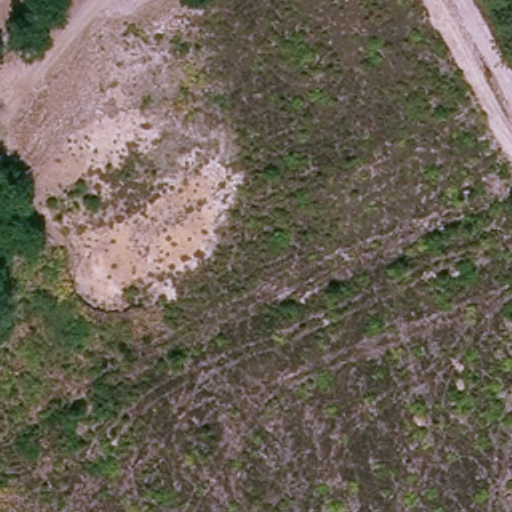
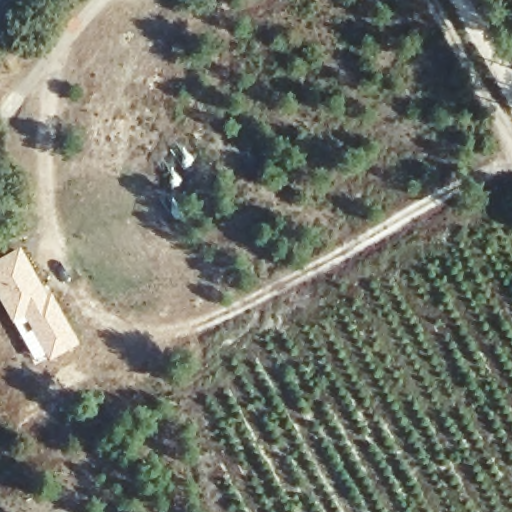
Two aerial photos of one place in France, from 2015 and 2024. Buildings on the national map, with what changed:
new [(19,246),(40,282),(56,303),(78,343),(36,365),(0,300),(0,257),(19,246)]

